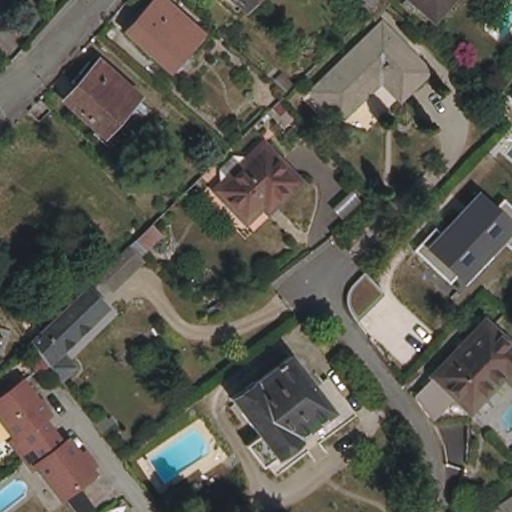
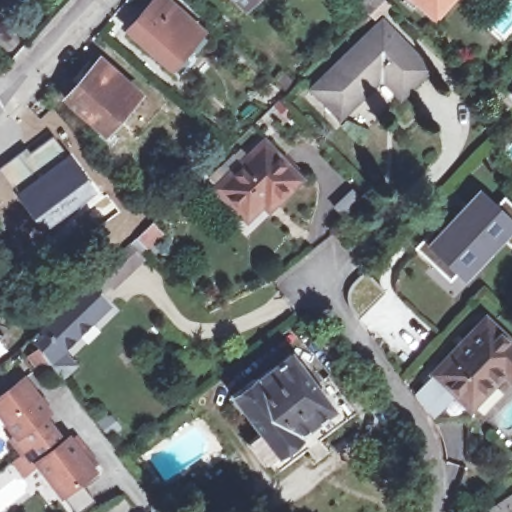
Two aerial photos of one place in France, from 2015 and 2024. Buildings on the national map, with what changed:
unchanged [(192,47),(173,68),(130,28),(156,0),(170,0),(210,35),(196,51),(192,47)]
unchanged [(238,0),(256,0),(248,9),(238,0)]
unchanged [(384,0),(385,0),(370,14),(356,0),(384,0)]
unchanged [(415,0),(453,0),(435,18),(415,0)]
unchanged [(401,95),(383,78),(345,115),(317,89),(382,26),(428,70),(401,95)]
unchanged [(85,75),(91,79),(101,67),(140,101),(106,138),(68,103),(82,89),(76,85),(85,75)]
new [(26,146),(29,150),(52,134),(67,151),(13,191),(0,172),(0,166),(26,146)]
unchanged [(268,209),(251,224),(217,187),(266,141),(308,186),(293,200),(276,216),(268,209)]
new [(67,151),(96,188),(41,231),(13,191),(67,151)]
unchanged [(505,245),(471,285),(460,275),(451,283),(415,250),(433,229),(442,234),(485,190),(499,206),(505,199),(512,205),(512,248),(510,249),(505,245)]
unchanged [(137,237),(151,223),(163,234),(147,248),(137,237)]
unchanged [(94,266),(122,239),(146,260),(117,288),(94,266)]
new [(345,297),(351,286),(361,273),(382,293),(355,322),(350,317),(345,307),(345,297)]
unchanged [(31,348),(41,340),(35,332),(88,279),(89,279),(110,302),(65,343),(81,360),(67,374),(66,372),(50,352),(40,360),(31,348)]
unchanged [(471,402),(442,374),(490,326),(512,347),(512,373),(506,367),(471,402)]
unchanged [(285,357),(309,388),(325,376),(353,411),(275,472),(265,463),(262,466),(244,444),(256,433),(228,398),(250,381),(252,383),(285,357)]
unchanged [(95,475),(61,499),(0,418),(0,394),(25,376),(95,475)]
demolished [(6,512),(0,512),(0,504),(6,512)]

